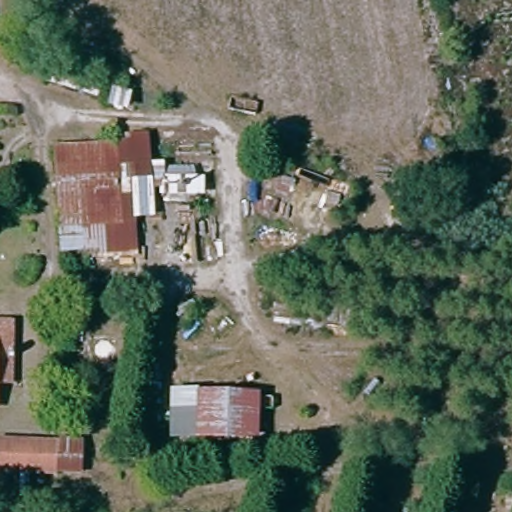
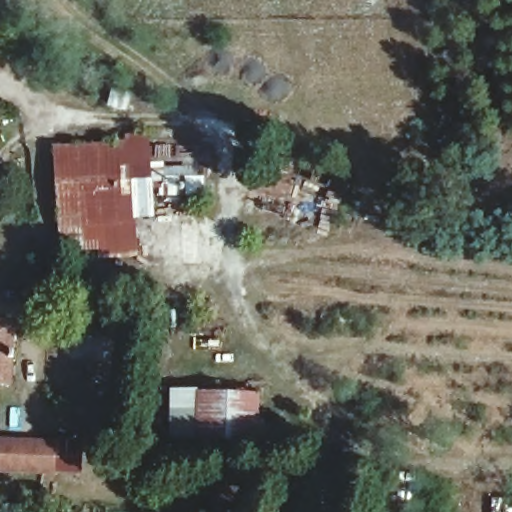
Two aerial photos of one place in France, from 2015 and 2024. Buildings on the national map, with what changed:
unchanged [(64,254),(58,152),(133,149),(137,251),(64,254)]
unchanged [(265,391),(263,442),(175,440),(176,390),(265,391)]
unchanged [(78,471),(0,469),(0,443),(79,443),(78,471)]

